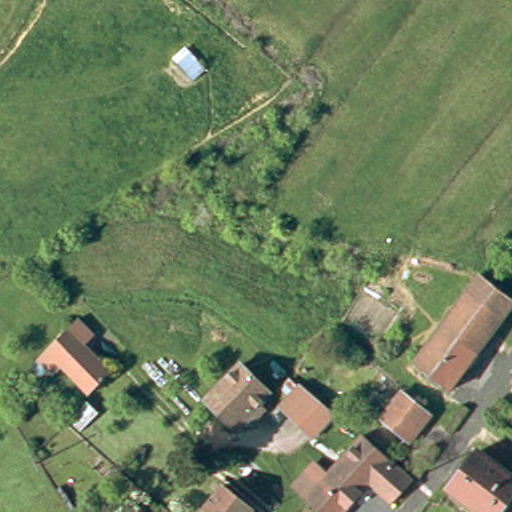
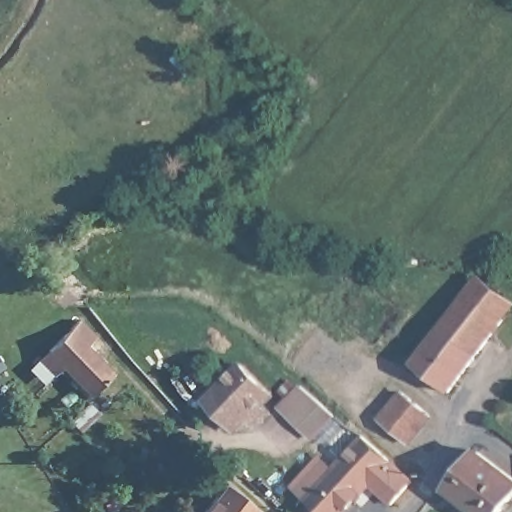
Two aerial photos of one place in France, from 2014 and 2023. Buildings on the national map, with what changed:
unchanged [(414,372),(479,284),(512,308),(512,313),(448,397),(414,372)]
unchanged [(47,360),(67,339),(78,327),(85,334),(92,342),(82,353),(92,363),(98,356),(118,374),(119,375),(112,382),(93,403),(47,360)]
unchanged [(254,426),(248,421),(237,432),(207,405),(240,368),(270,395),(260,407),(266,412),(254,426)]
unchanged [(432,419),(410,447),(406,444),(383,427),(365,412),(387,384),(432,419)]
unchanged [(301,389),(335,417),(316,438),(282,409),(301,389)]
unchanged [(366,490),(357,500),(361,503),(356,508),(352,505),(346,512),(313,512),(306,506),(337,471),(361,444),(390,469),(408,485),(389,509),(366,490)]
unchanged [(482,456),(512,480),(512,506),(507,512),(479,512),(454,492),(482,456)]
unchanged [(294,484),(317,457),(337,471),(303,507),(294,484)]
unchanged [(226,490),(256,512),(208,512),(226,490)]

